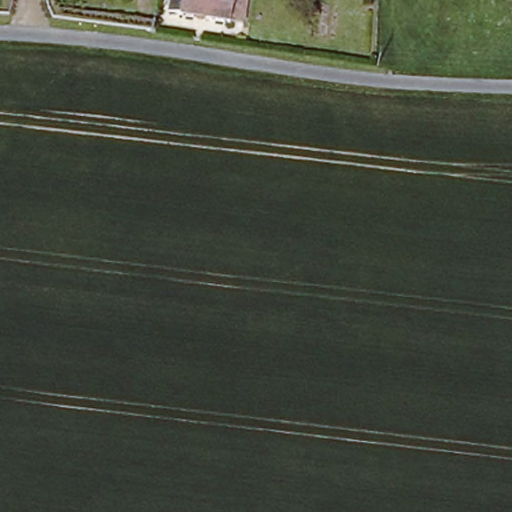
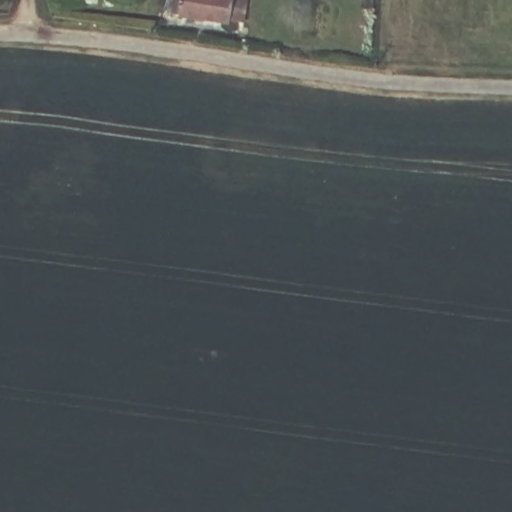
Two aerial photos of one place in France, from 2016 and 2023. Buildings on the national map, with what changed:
unchanged [(235,21),(174,9),(175,0),(238,0),(235,21)]

